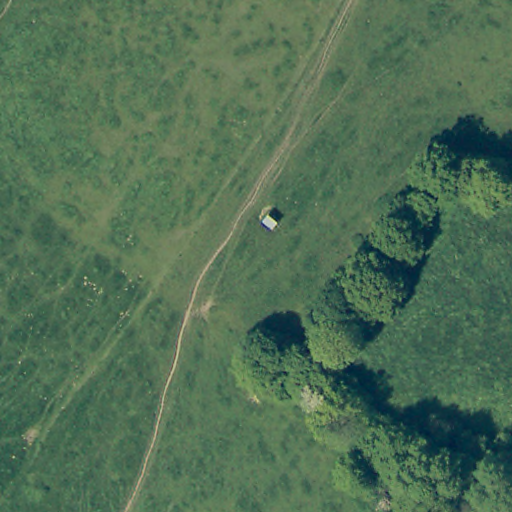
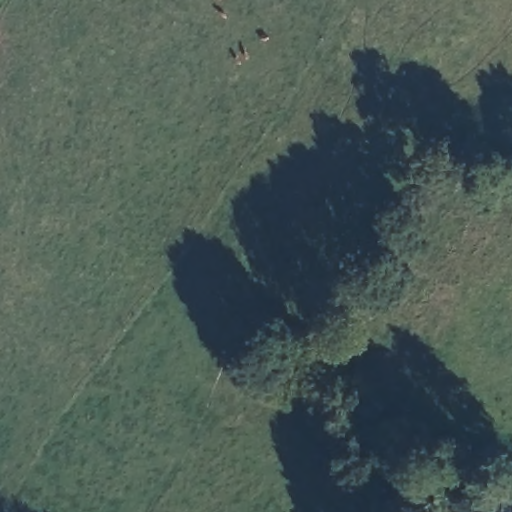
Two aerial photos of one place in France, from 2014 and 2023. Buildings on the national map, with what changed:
[]

